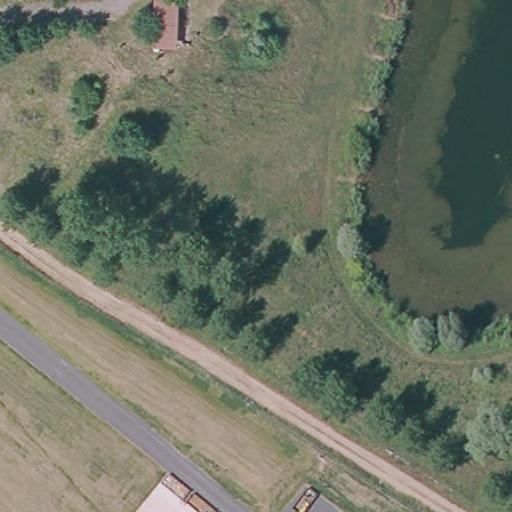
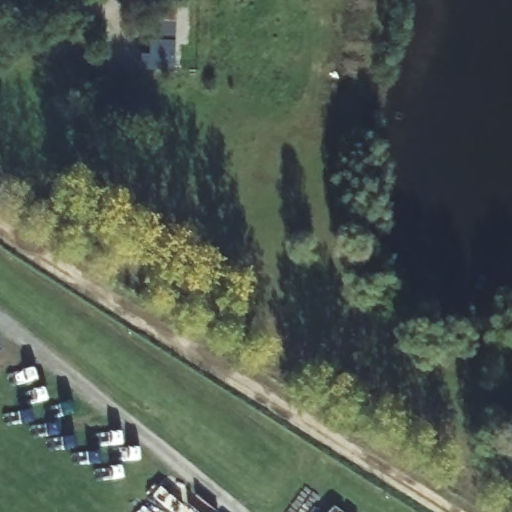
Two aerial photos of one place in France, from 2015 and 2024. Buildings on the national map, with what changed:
unchanged [(150,0),(175,0),(174,47),(149,46),(150,0)]

